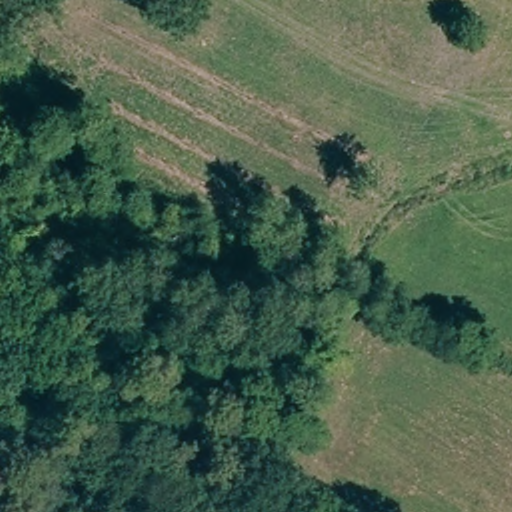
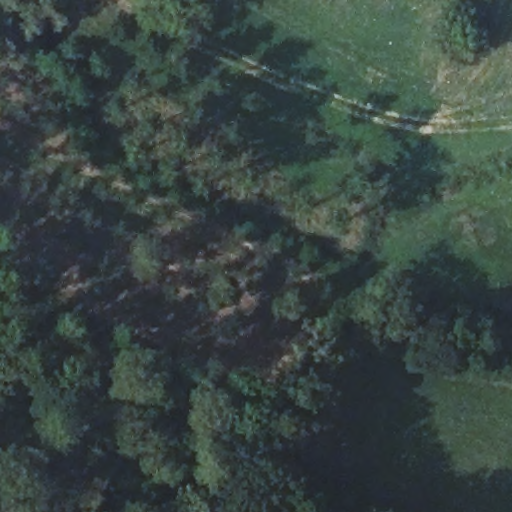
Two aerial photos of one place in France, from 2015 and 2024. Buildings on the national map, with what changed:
[]

